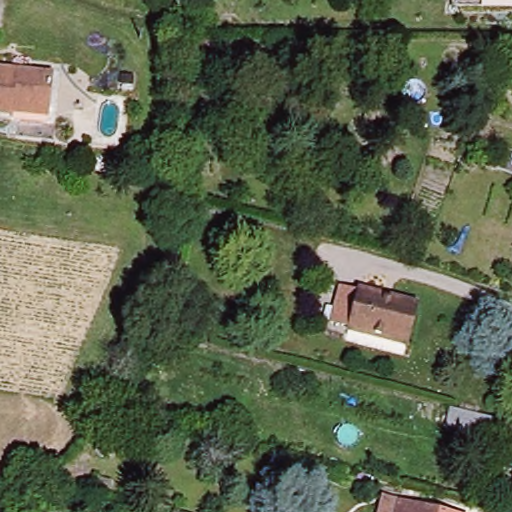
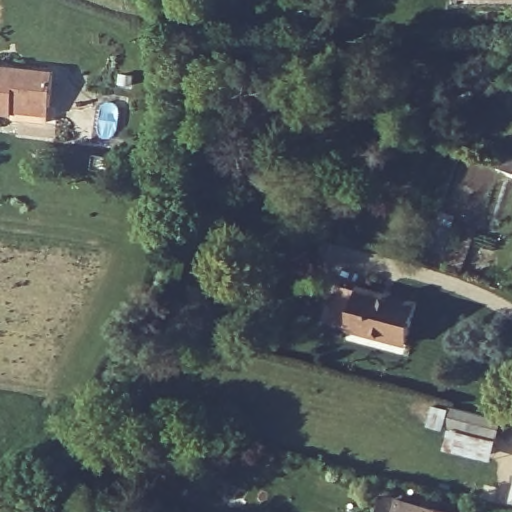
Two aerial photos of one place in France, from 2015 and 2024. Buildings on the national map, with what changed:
unchanged [(2,112),(0,112),(0,68),(50,70),(47,105),(47,114),(2,112)]
unchanged [(355,331),(354,328),(338,324),(349,288),(366,292),(369,290),(425,306),(413,347),(355,331)]
unchanged [(454,406),(502,418),(497,435),(450,423),(454,406)]
unchanged [(400,498),(451,512),(384,512),(388,495),(400,498)]

